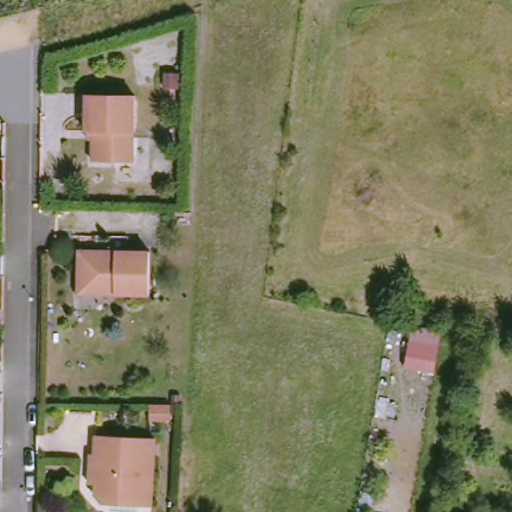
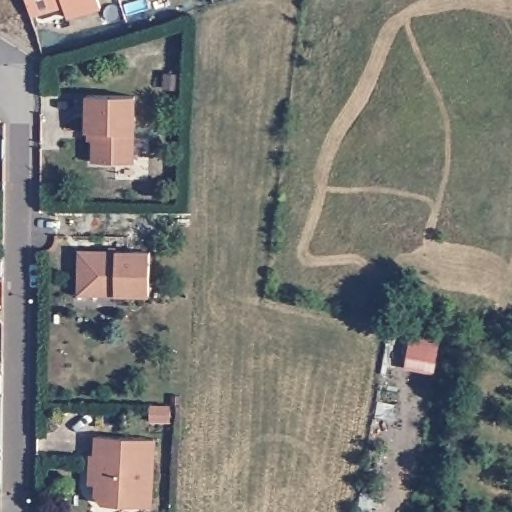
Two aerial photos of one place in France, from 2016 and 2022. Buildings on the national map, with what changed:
new [(99,11),(67,21),(64,10),(31,21),(25,0),(95,0),(99,11)]
unchanged [(92,161),(92,131),(84,131),(85,95),(132,96),(132,162),(92,161)]
unchanged [(113,297),(113,290),(79,288),(80,250),(151,254),(149,298),(113,297)]
unchanged [(410,369),(414,342),(440,346),(435,373),(410,369)]
unchanged [(109,504),(97,494),(97,482),(92,482),(93,461),(99,461),(99,435),(155,437),(152,506),(109,504)]

